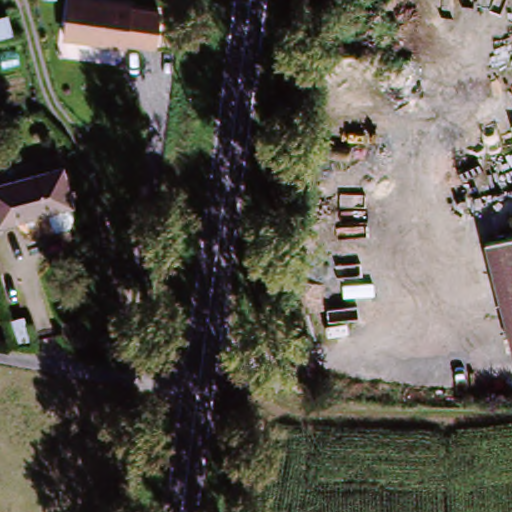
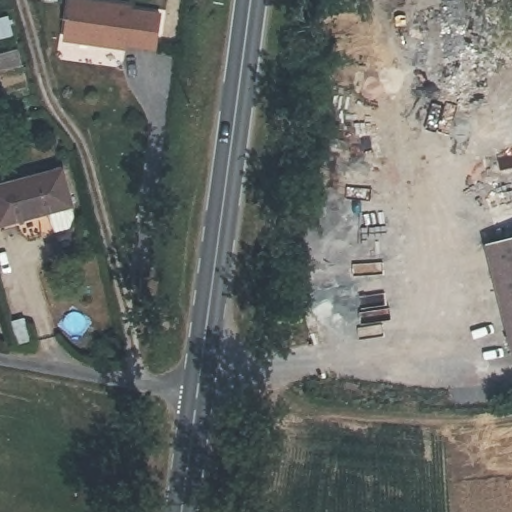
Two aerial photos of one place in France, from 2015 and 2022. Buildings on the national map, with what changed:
unchanged [(165,47),(135,42),(135,46),(74,36),(81,0),(116,0),(140,4),(141,4),(142,4),(141,7),(171,12),(165,47)]
unchanged [(70,223),(53,228),(45,203),(2,214),(0,204),(0,184),(62,169),(69,196),(74,211),(70,223)]
unchanged [(512,241),(512,347),(485,249),(512,241)]

